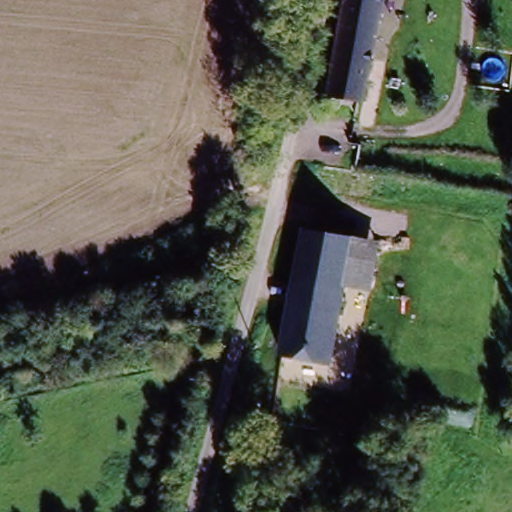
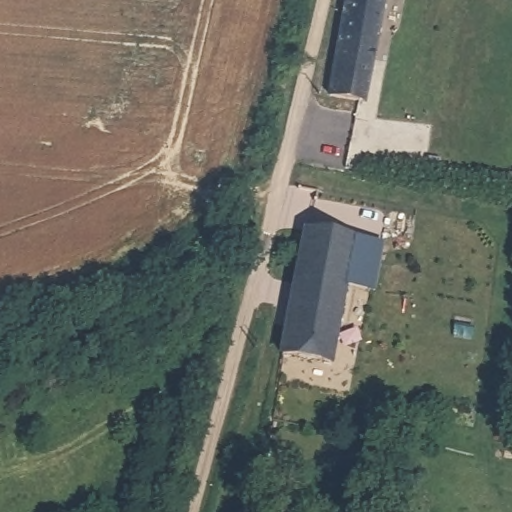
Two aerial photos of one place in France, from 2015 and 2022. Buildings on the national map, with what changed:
unchanged [(322,97),(343,0),(383,0),(361,103),(322,97)]
unchanged [(362,242),(337,363),(282,352),(307,232),(362,242)]

